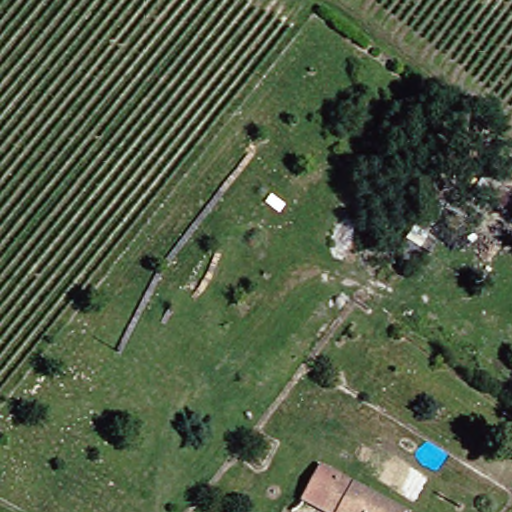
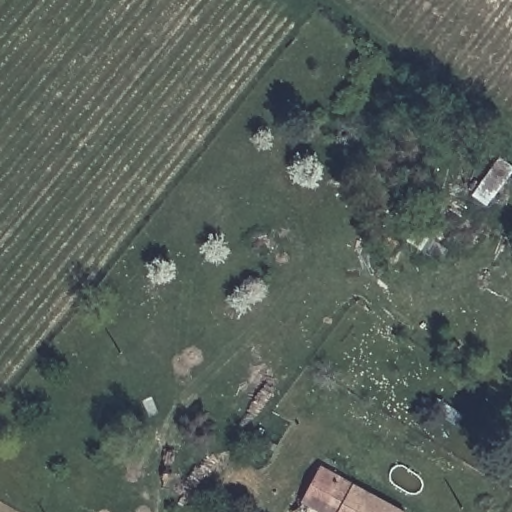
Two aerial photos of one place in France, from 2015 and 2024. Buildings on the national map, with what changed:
unchanged [(512,160),(512,170),(498,187),(484,177),(504,153),(512,160)]
unchanged [(331,507),(306,488),(327,460),(401,512),(327,512),(331,507)]

